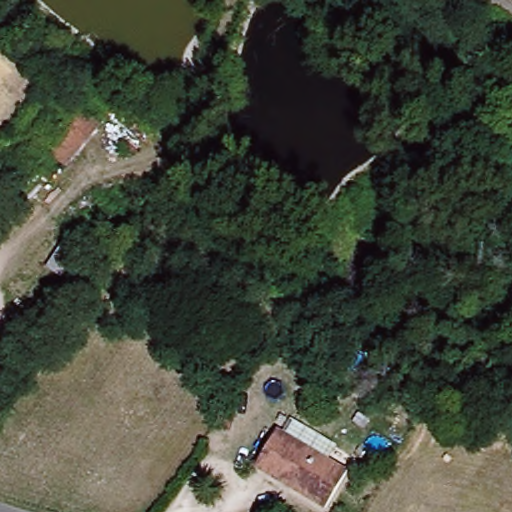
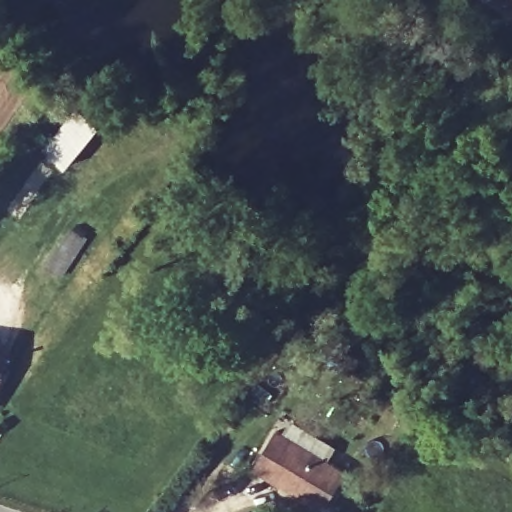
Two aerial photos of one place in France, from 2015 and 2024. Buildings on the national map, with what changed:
unchanged [(40,150),(77,106),(102,127),(68,174),(40,150)]
unchanged [(322,337),(348,352),(340,366),(314,351),(322,337)]
unchanged [(0,383),(0,371),(5,375),(0,383)]
unchanged [(347,474),(325,509),(257,467),(278,432),(347,474)]

